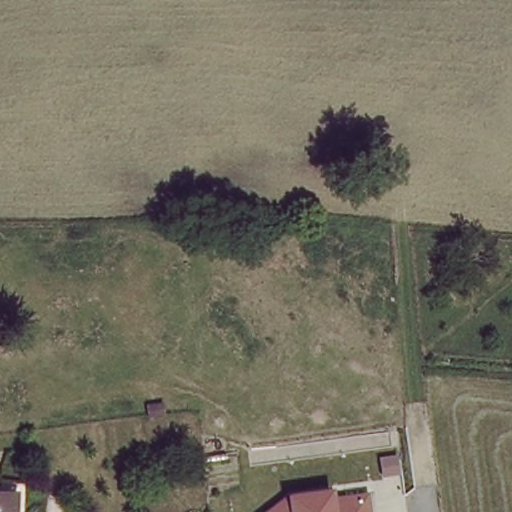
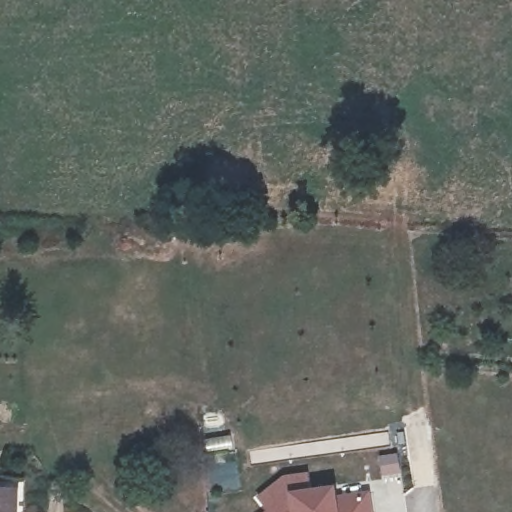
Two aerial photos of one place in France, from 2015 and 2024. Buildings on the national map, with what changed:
unchanged [(285,491),(325,484),(326,494),(360,489),(364,512),(258,512),(285,491)]
unchanged [(21,498),(20,510),(19,512),(0,512),(0,497),(21,498)]

